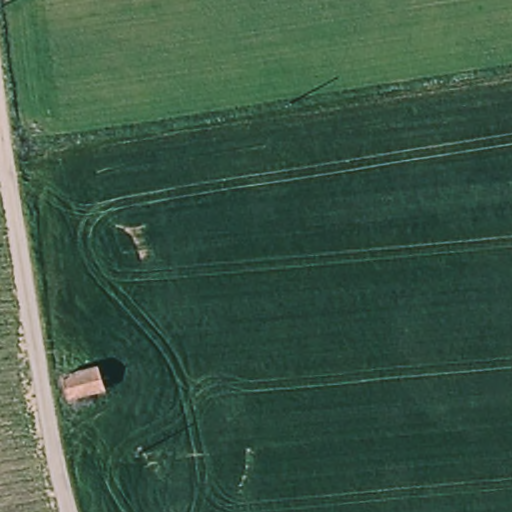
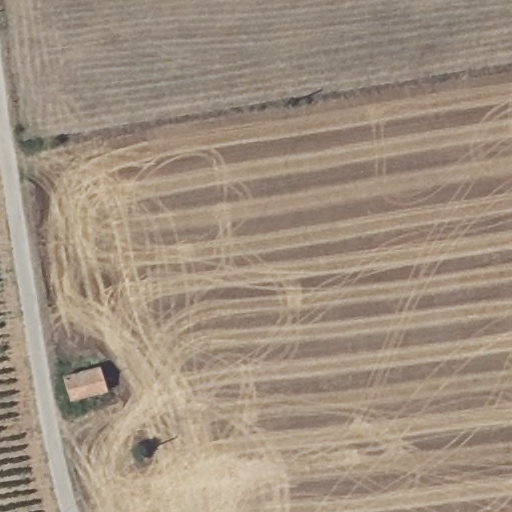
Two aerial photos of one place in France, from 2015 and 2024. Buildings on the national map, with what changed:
unchanged [(109,394),(70,401),(65,381),(105,373),(109,394)]

